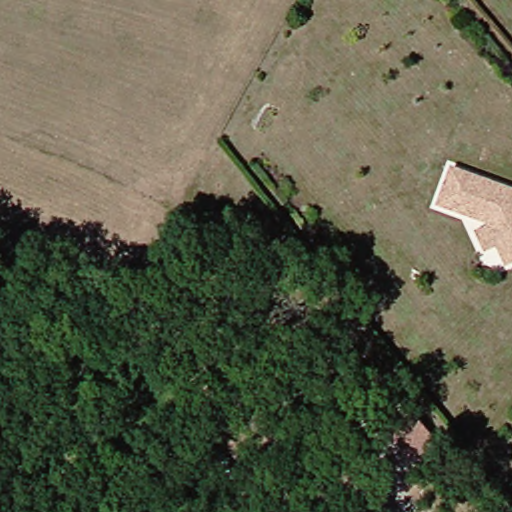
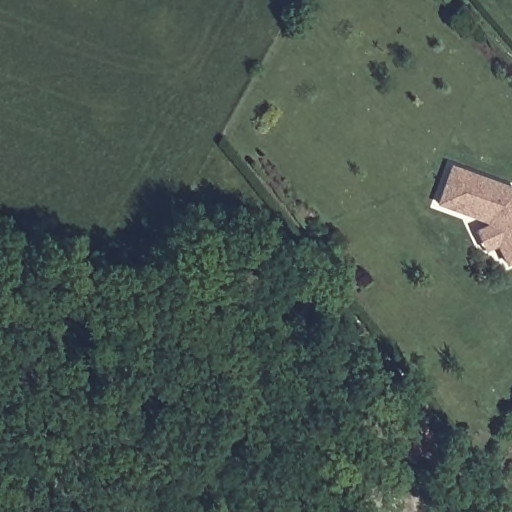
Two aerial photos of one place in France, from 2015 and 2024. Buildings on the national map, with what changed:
unchanged [(486,230),(499,224),(497,220),(449,200),(463,165),(512,184),(512,253),(507,242),(494,249),(486,230)]
unchanged [(399,472),(378,446),(403,426),(423,450),(429,457),(404,477),(399,472)]

